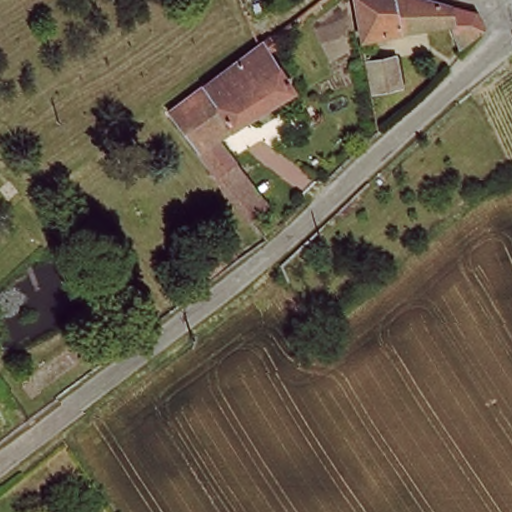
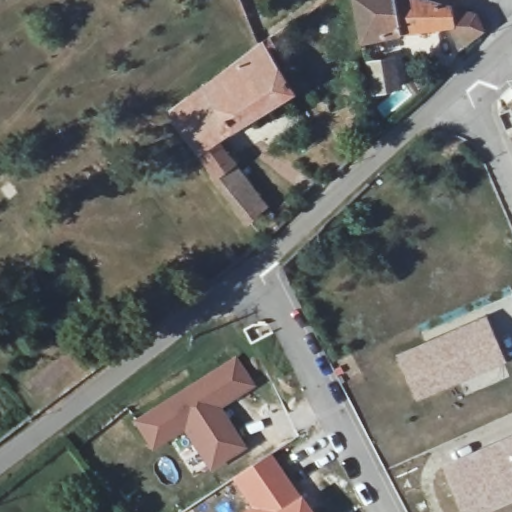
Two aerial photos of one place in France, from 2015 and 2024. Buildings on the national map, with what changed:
unchanged [(357,0),(432,0),(464,9),(479,13),(486,30),(462,39),(457,21),(430,24),(420,26),(364,39),(357,0)]
unchanged [(209,174),(192,152),(182,139),(167,119),(189,101),(255,51),(266,43),(272,52),(266,57),(285,87),(292,98),(289,99),(216,144),(232,165),(211,179),(209,174)]
new [(397,55),(403,90),(371,98),(366,63),(397,55)]
unchanged [(232,165),(246,182),(266,209),(246,224),(241,219),(222,194),(213,182),(211,179),(232,165)]
new [(485,316),(507,363),(416,402),(397,355),(485,316)]
new [(235,359),(254,390),(221,411),(245,450),(208,475),(182,433),(151,452),(133,423),(235,359)]
new [(488,512),(461,512),(443,467),(512,435),(512,502),(488,512)]
new [(231,481),(269,455),(299,497),(309,512),(243,512),(249,508),(231,481)]

